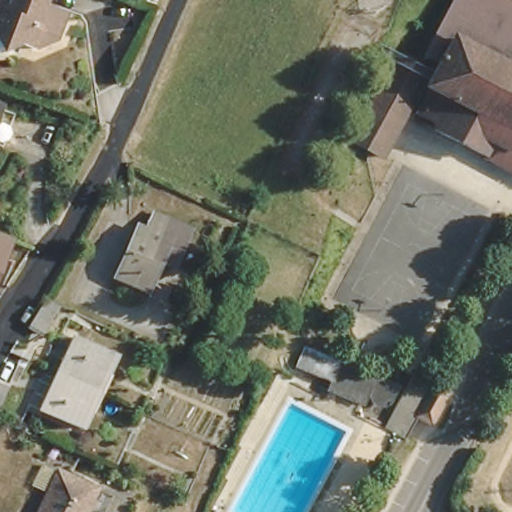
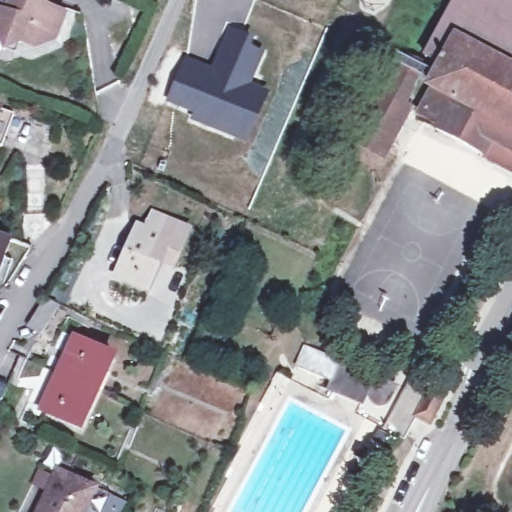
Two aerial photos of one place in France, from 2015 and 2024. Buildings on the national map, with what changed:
unchanged [(45,47),(30,42),(12,48),(0,24),(0,4),(2,0),(53,0),(52,5),(74,14),(64,39),(45,47)]
unchanged [(454,121),(457,114),(441,105),(461,64),(452,59),(456,53),(444,47),(468,0),(512,0),(512,150),(454,121)]
new [(187,60),(214,71),(232,31),(251,38),(247,48),(262,54),(247,86),(266,94),(247,141),(194,118),(197,110),(170,99),(187,60)]
unchanged [(384,78),(394,54),(414,63),(405,88),(384,78)]
unchanged [(351,144),(372,94),(400,106),(379,156),(351,144)]
unchanged [(9,143),(0,140),(0,98),(12,103),(10,107),(21,111),(9,143)]
unchanged [(160,225),(190,237),(168,288),(160,284),(152,300),(116,285),(133,244),(149,251),(160,225)]
unchanged [(3,249),(0,258),(0,241),(5,243),(3,249)]
unchanged [(2,289),(0,288),(0,260),(10,264),(2,289)]
unchanged [(32,320),(45,298),(59,305),(43,334),(29,326),(32,320)]
unchanged [(301,359),(310,338),(400,377),(392,394),(385,399),(380,397),(377,394),(376,390),(381,379),(375,375),(366,399),(332,383),(336,375),(301,359)]
unchanged [(84,436),(35,412),(49,381),(67,340),(117,362),(99,403),(84,436)]
unchanged [(446,387),(449,388),(436,420),(423,415),(412,440),(389,429),(412,372),(446,387)]
unchanged [(0,408),(0,387),(8,390),(0,408)]
unchanged [(35,512),(52,473),(90,490),(80,512),(35,512)]

